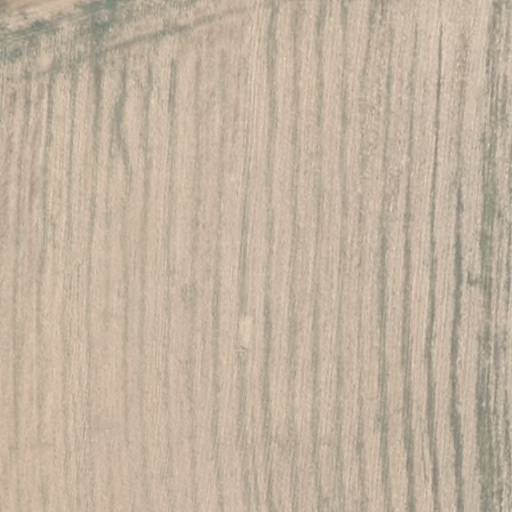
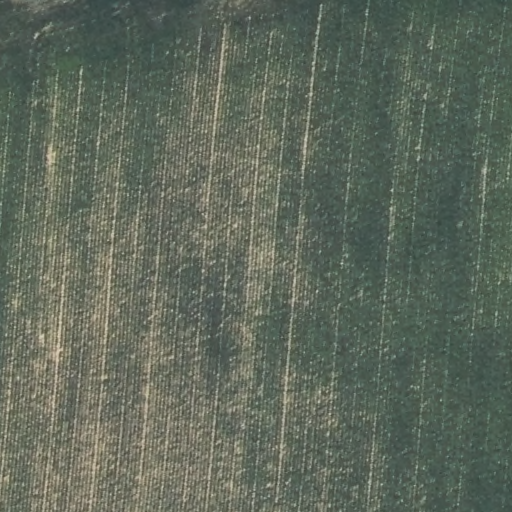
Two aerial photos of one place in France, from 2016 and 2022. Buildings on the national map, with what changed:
[]

